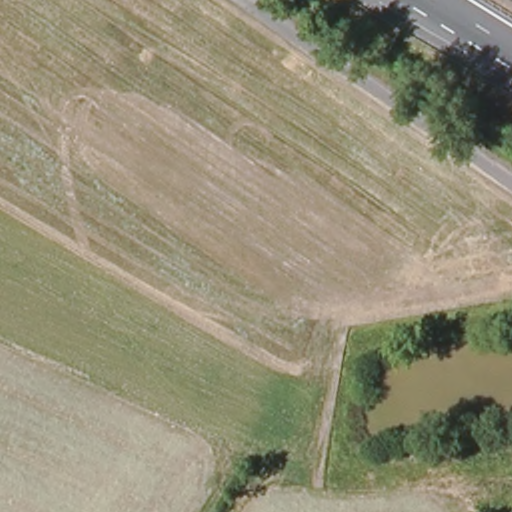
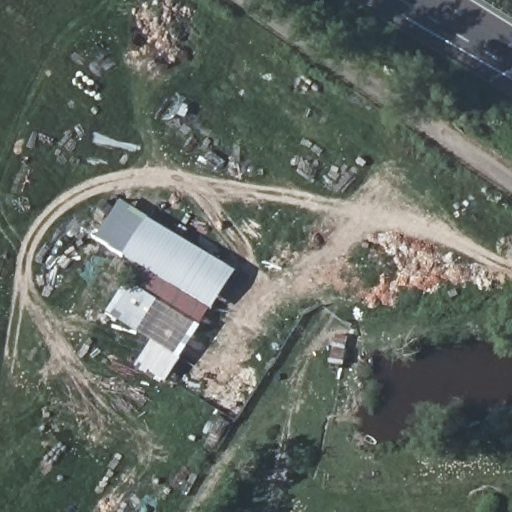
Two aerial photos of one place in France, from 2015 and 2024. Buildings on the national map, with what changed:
new [(233,269),(199,327),(189,322),(187,324),(183,322),(167,348),(181,357),(166,383),(140,367),(159,335),(146,327),(142,334),(106,312),(135,263),(123,255),(146,217),(233,269)]

